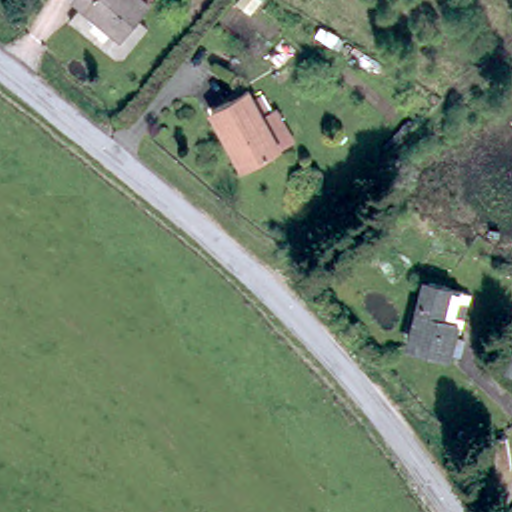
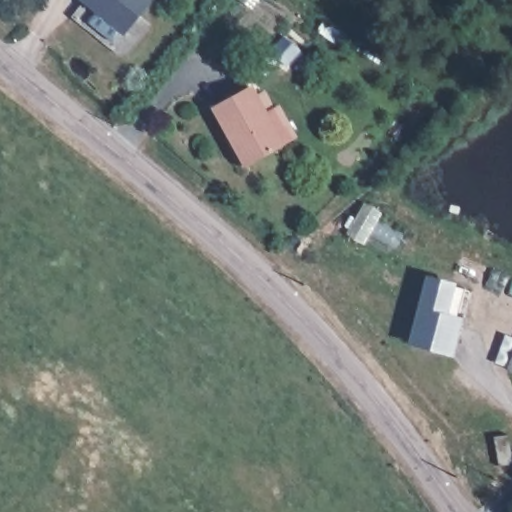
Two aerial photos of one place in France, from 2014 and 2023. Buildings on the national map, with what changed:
unchanged [(97,6),(90,12),(74,0),(151,0),(130,29),(97,6)]
unchanged [(244,167),(205,112),(239,89),(245,98),(253,92),(265,109),(268,106),(290,136),(244,167)]
unchanged [(462,287),(440,353),(408,342),(427,278),(462,287)]
unchanged [(510,367),(512,361),(512,367),(510,367)]

